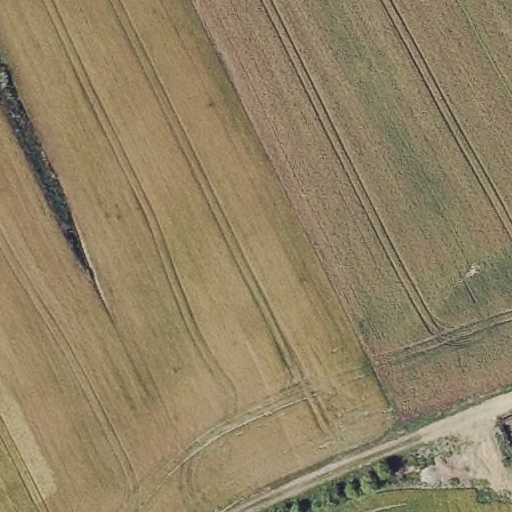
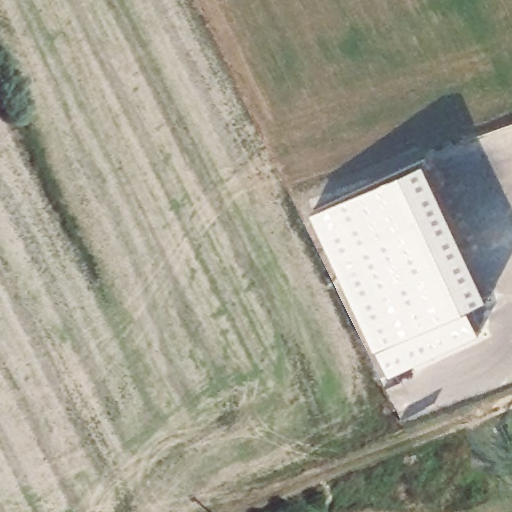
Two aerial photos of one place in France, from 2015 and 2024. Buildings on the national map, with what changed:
new [(491,294),(472,303),(482,330),(391,372),(314,209),(429,157),(491,294)]

